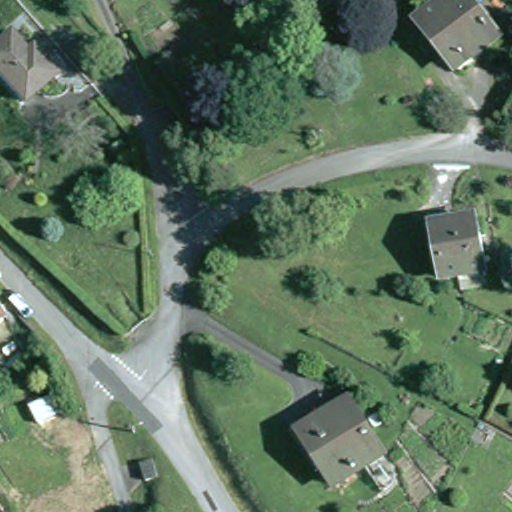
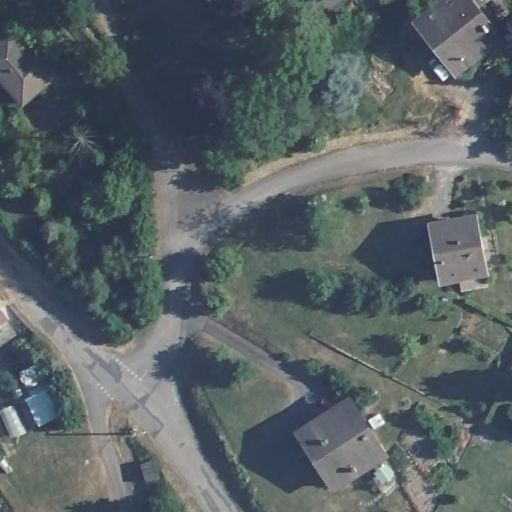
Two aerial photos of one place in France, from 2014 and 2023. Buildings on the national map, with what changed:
unchanged [(437,51),(416,25),(448,0),(459,0),(464,5),(472,0),(491,25),(484,31),(493,42),(462,67),(454,74),(437,51)]
unchanged [(32,58),(38,53),(56,74),(23,102),(0,76),(0,41),(10,33),(32,58)]
unchanged [(191,130),(168,101),(194,80),(217,108),(191,130)]
unchanged [(487,281),(461,286),(458,272),(444,275),(434,221),(474,213),(487,281)]
unchanged [(5,317),(0,321),(0,310),(5,317)]
unchanged [(298,430),(304,426),(339,403),(375,457),(341,480),(331,466),(324,470),(298,430)]
unchanged [(361,422),(372,415),(378,424),(367,431),(361,422)]

